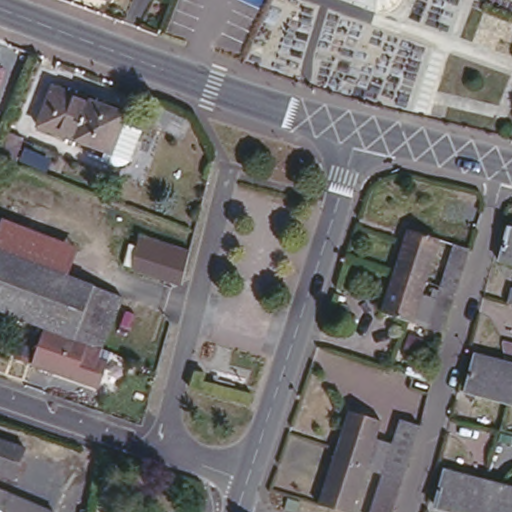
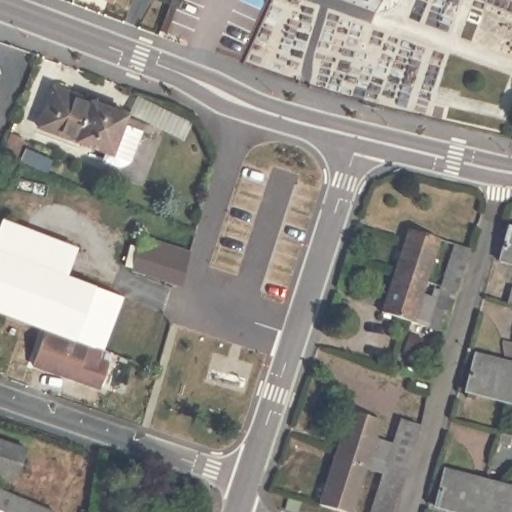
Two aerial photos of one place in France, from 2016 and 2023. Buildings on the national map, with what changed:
unchanged [(108,0),(111,0),(111,1),(108,0)]
unchanged [(397,9),(391,12),(385,13),(378,12),(345,0),(405,0),(402,5),(397,9)]
unchanged [(125,111),(110,150),(37,123),(51,84),(125,111)]
unchanged [(2,213),(78,242),(66,272),(0,247),(0,219),(2,213)]
unchanged [(510,222),(512,223),(512,258),(498,254),(510,222)]
unchanged [(408,232),(436,241),(425,279),(396,272),(408,232)]
unchanged [(131,271),(133,263),(138,240),(139,234),(194,247),(184,283),(131,271)]
unchanged [(66,272),(120,293),(101,343),(44,322),(0,305),(0,247),(66,272)]
unchanged [(412,319),(384,313),(396,272),(425,279),(412,319)]
unchanged [(512,285),(512,303),(508,301),(512,285)]
unchanged [(97,354),(105,357),(96,382),(30,357),(44,322),(101,343),(97,354)]
unchanged [(473,357),(512,367),(512,379),(506,402),(464,391),(473,357)]
unchanged [(512,379),(512,403),(506,402),(512,379)]
unchanged [(381,413),(368,456),(335,447),(351,403),(381,413)]
unchanged [(400,416),(416,421),(402,466),(389,512),(380,512),(371,509),(386,461),(400,416)]
unchanged [(375,433),(393,439),(386,461),(383,472),(365,465),(368,456),(375,433)]
unchanged [(27,445),(15,474),(0,469),(0,436),(27,445)]
unchanged [(335,447),(368,456),(353,504),(319,493),(335,447)]
unchanged [(439,497),(448,465),(489,476),(481,509),(439,497)]
unchanged [(512,512),(489,512),(481,509),(489,476),(512,483),(512,512)]
unchanged [(54,510),(53,512),(0,512),(0,488),(54,510)]

